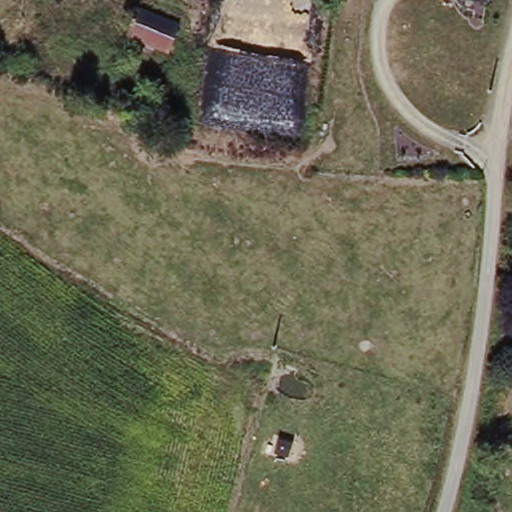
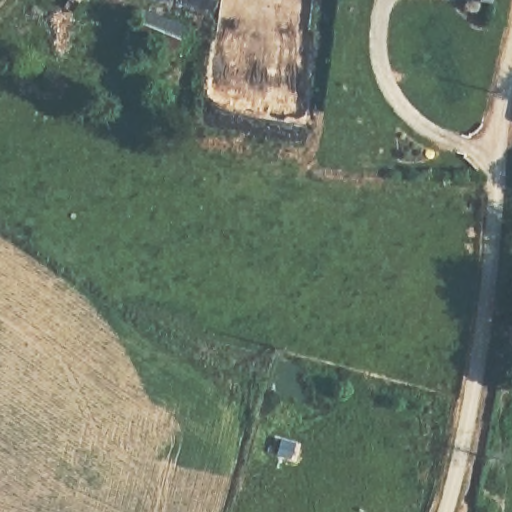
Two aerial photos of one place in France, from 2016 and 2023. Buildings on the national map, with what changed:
unchanged [(186,26),(178,52),(136,39),(135,38),(143,12),(186,26)]

